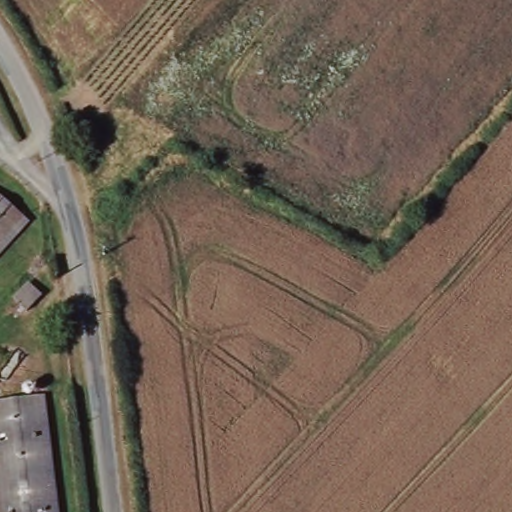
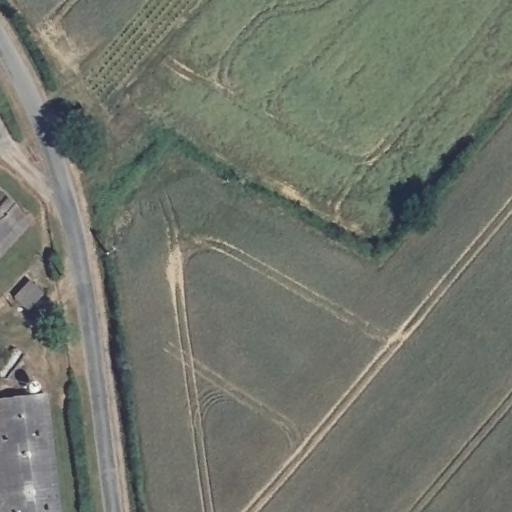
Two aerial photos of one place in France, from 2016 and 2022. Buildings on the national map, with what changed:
unchanged [(24,216),(29,221),(0,253),(0,194),(24,216)]
unchanged [(26,311),(14,299),(29,282),(42,294),(26,311)]
unchanged [(0,512),(0,400),(44,395),(58,512),(0,512)]

